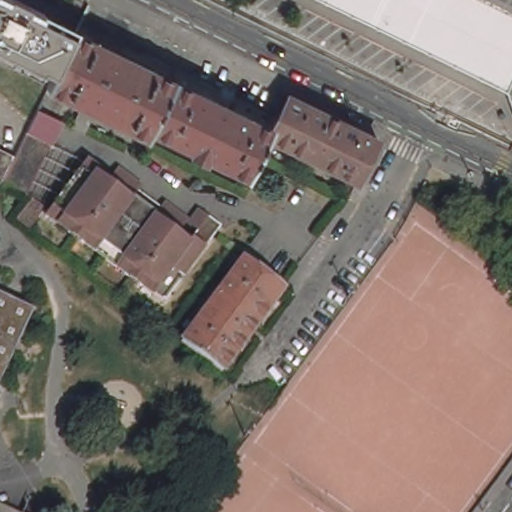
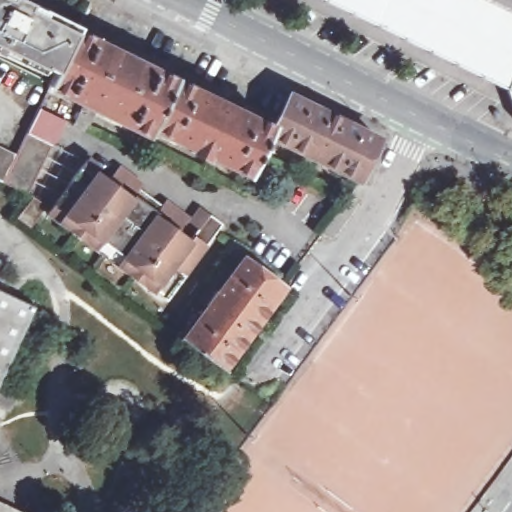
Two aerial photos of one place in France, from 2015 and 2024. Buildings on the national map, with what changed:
unchanged [(27,7),(75,31),(75,32),(57,69),(56,70),(55,73),(43,67),(42,69),(0,50),(0,0),(13,0),(26,6),(27,7)]
unchanged [(507,89),(325,0),(512,0),(512,79),(507,89)]
unchanged [(75,124),(85,104),(72,98),(52,88),(50,86),(48,86),(55,73),(56,70),(57,69),(75,32),(75,31),(77,31),(78,33),(94,40),(97,41),(110,49),(115,50),(122,54),(130,58),(159,72),(173,79),(176,80),(176,81),(168,97),(167,100),(160,117),(160,118),(158,119),(154,129),(150,136),(130,126),(95,109),(85,130),(75,124)]
unchanged [(273,129),(270,136),(267,142),(261,153),(257,161),(250,175),(246,174),(231,166),(227,164),(210,156),(209,156),(207,161),(205,160),(192,154),(191,153),(193,148),(183,143),(182,143),(162,134),(154,129),(158,119),(160,118),(160,117),(167,100),(168,97),(176,81),(176,80),(180,82),(193,89),(195,90),(200,93),(202,93),(215,99),(222,103),(227,105),(232,109),(246,115),(248,116),(253,119),(254,119),(255,119),(268,126),(273,129)]
unchanged [(273,129),(290,94),(332,115),(337,118),(380,139),(360,180),(270,136),(273,129)]
unchanged [(2,182),(3,180),(9,169),(16,154),(22,143),(25,136),(38,110),(62,123),(28,195),(2,182)]
unchanged [(3,180),(2,182),(0,181),(0,147),(16,154),(9,169),(3,180)]
unchanged [(119,267),(106,258),(93,248),(59,223),(47,214),(52,207),(86,161),(98,170),(95,175),(106,183),(116,170),(140,187),(137,190),(160,207),(163,204),(187,220),(177,234),(188,242),(199,228),(190,222),(200,210),(207,217),(209,214),(223,224),(172,293),(166,300),(154,292),(119,267)]
unchanged [(442,170),(442,169),(465,180),(464,182),(443,223),(422,212),(442,170)]
unchanged [(17,218),(32,198),(47,209),(32,229),(17,218)]
unchanged [(185,338),(244,257),(285,287),(225,368),(185,338)]
unchanged [(0,383),(0,290),(35,307),(0,383)]
unchanged [(0,501),(23,512),(25,512),(0,512),(0,501)]

